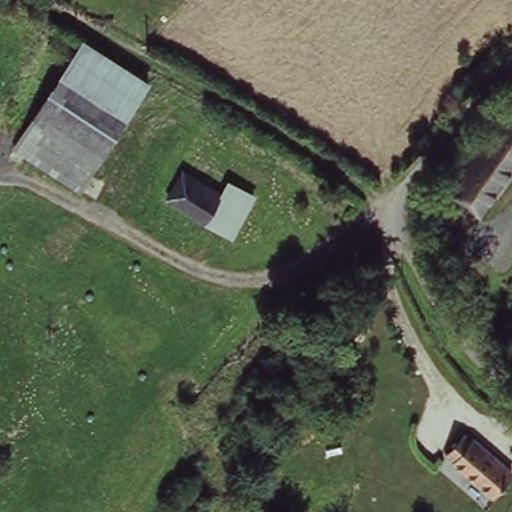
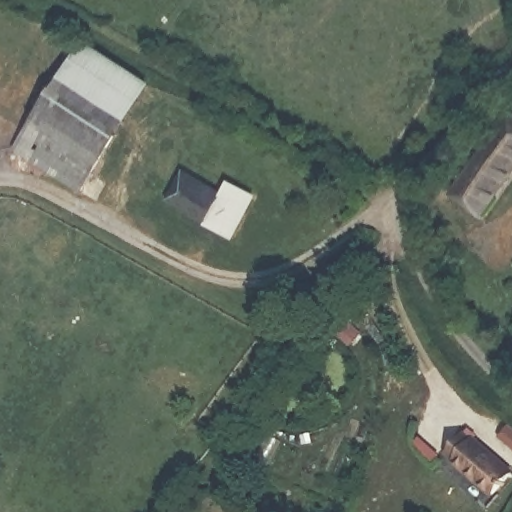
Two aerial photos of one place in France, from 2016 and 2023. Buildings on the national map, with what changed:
unchanged [(86,36),(153,77),(122,127),(56,86),(86,36)]
unchanged [(56,86),(122,127),(106,154),(38,114),(56,86)]
unchanged [(12,157),(21,143),(38,114),(106,154),(87,184),(36,152),(26,166),(12,157)]
unchanged [(512,165),(481,203),(458,183),(512,117),(512,165)]
unchanged [(209,228),(165,196),(192,154),(261,197),(237,241),(209,228)]
unchanged [(475,439),(477,436),(512,462),(512,475),(499,494),(458,463),(460,461),(449,453),(465,432),(475,439)]

